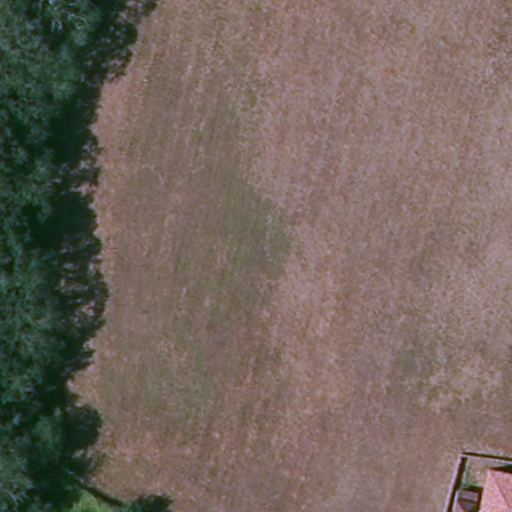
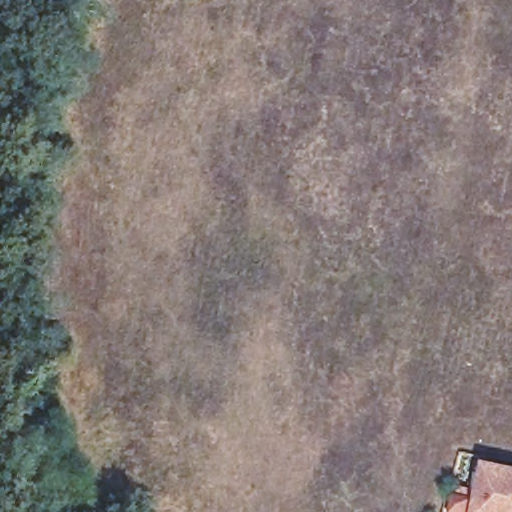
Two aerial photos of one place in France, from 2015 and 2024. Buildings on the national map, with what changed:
unchanged [(512,468),(512,512),(482,512),(488,465),(512,468)]
unchanged [(475,490),(472,512),(458,512),(452,511),(455,487),(475,490)]

